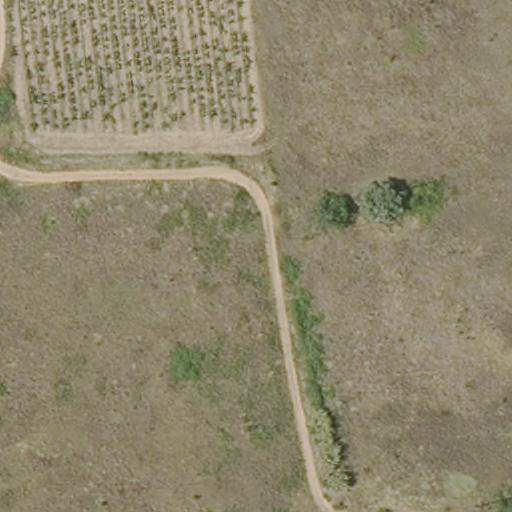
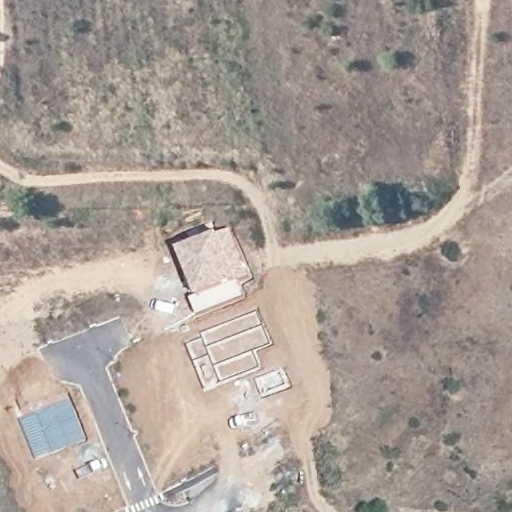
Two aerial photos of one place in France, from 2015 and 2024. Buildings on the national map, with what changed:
new [(230,227),(250,276),(238,278),(238,280),(244,296),(199,315),(192,297),(197,292),(177,245),(230,227)]

